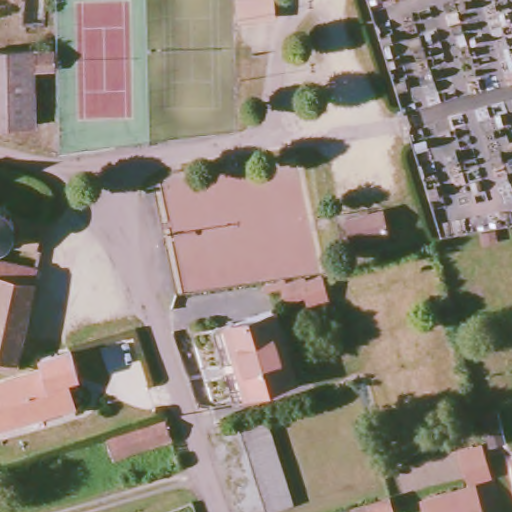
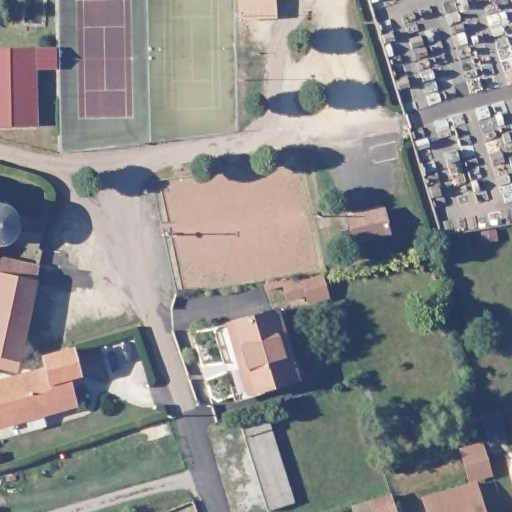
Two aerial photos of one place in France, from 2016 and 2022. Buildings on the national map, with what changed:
unchanged [(237,21),(235,0),(280,0),(281,20),(237,21)]
unchanged [(33,123),(0,124),(0,50),(32,49),(33,123)]
unchanged [(36,50),(52,49),(52,66),(37,67),(36,50)]
unchanged [(7,208),(12,214),(43,221),(35,246),(35,248),(6,240),(2,242),(0,243),(0,204),(2,205),(7,208)]
unchanged [(347,220),(382,211),(386,231),(352,239),(347,220)]
unchanged [(0,260),(35,267),(17,360),(15,369),(0,366),(0,260)]
unchanged [(328,272),(333,302),(307,307),(305,300),(289,303),(284,280),(328,272)]
unchanged [(223,329),(284,312),(303,378),(243,396),(223,329)]
unchanged [(0,382),(22,376),(45,368),(42,357),(70,348),(77,374),(65,378),(72,403),(0,426),(0,382)]
unchanged [(240,420),(265,413),(292,502),(268,510),(240,420)]
unchanged [(113,437),(172,419),(177,437),(118,453),(113,437)]
unchanged [(488,439),(500,436),(503,450),(492,453),(488,439)]
unchanged [(468,483),(460,449),(482,442),(492,477),(468,483)]
unchanged [(12,479),(0,483),(0,473),(10,470),(12,479)]
unchanged [(420,499),(477,483),(485,512),(424,512),(420,499)]
unchanged [(389,500),(392,512),(354,512),(353,512),(389,500)]

